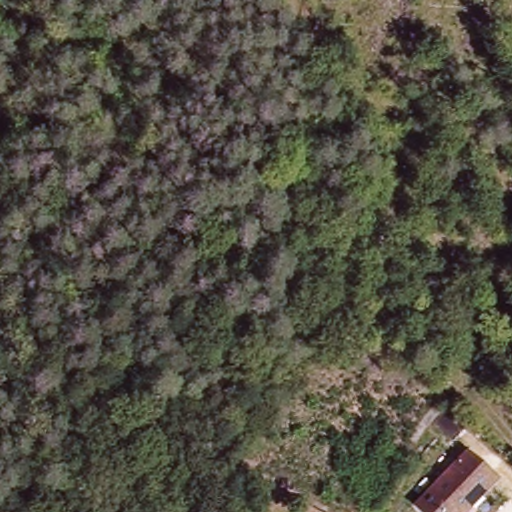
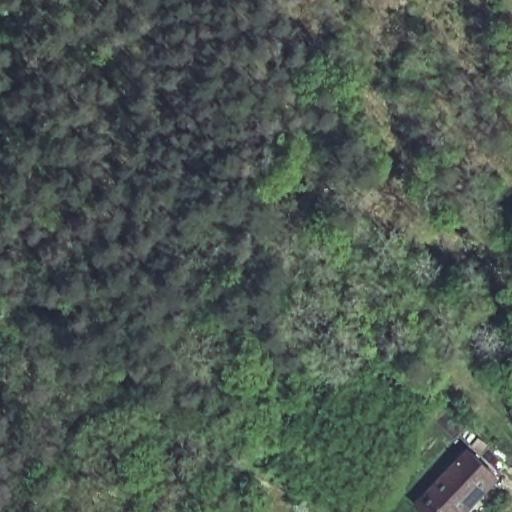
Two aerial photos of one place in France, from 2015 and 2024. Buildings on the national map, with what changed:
unchanged [(437,416),(451,404),(473,426),(460,438),(437,416)]
unchanged [(433,492),(480,453),(503,482),(467,512),(432,512),(422,500),(433,492)]

